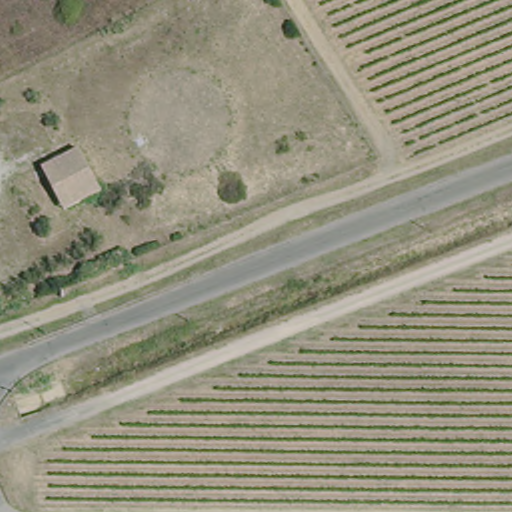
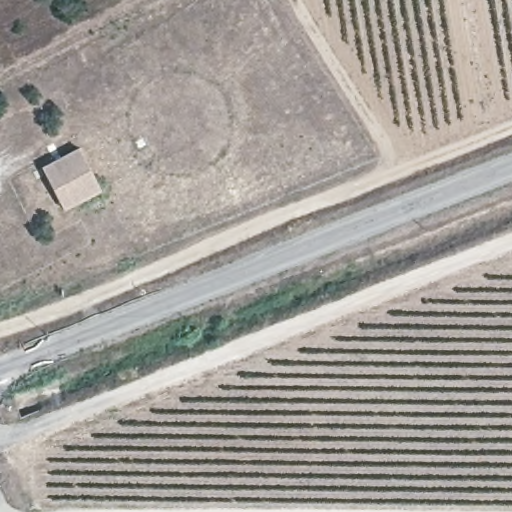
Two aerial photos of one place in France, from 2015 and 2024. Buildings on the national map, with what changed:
unchanged [(46,169),(57,163),(87,149),(107,190),(80,206),(69,213),(46,169)]

